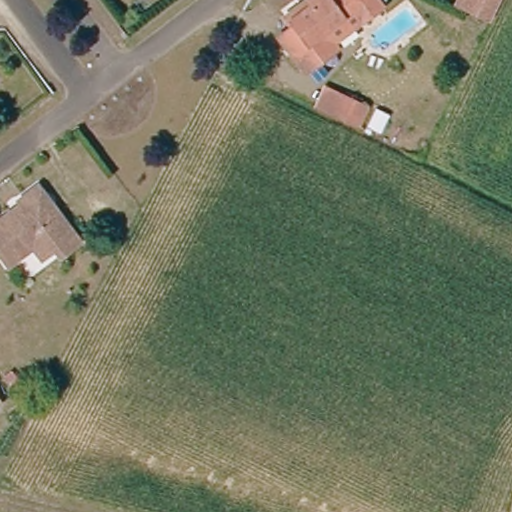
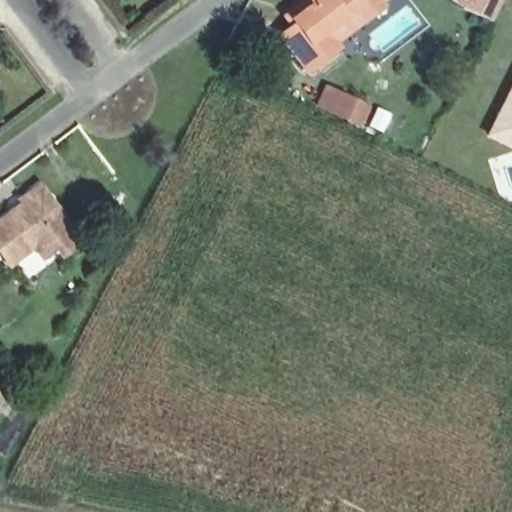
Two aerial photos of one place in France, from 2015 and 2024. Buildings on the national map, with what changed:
unchanged [(362,24),(356,14),(328,33),(345,58),(312,80),(287,45),(304,34),(300,29),(321,14),(317,8),(328,0),(333,0),(335,2),(338,0),(376,0),(383,10),(362,24)]
unchanged [(458,5),(461,0),(495,0),(486,18),(458,5)]
new [(512,152),(482,137),(512,78),(512,152)]
unchanged [(360,129),(335,117),(316,108),(325,88),(344,98),(368,109),(360,129)]
unchanged [(382,132),(368,125),(377,109),(390,116),(382,132)]
unchanged [(79,238),(61,252),(52,242),(40,242),(7,264),(0,252),(0,223),(23,208),(20,203),(39,190),(79,238)]
unchanged [(5,393),(0,396),(0,387),(5,393)]

